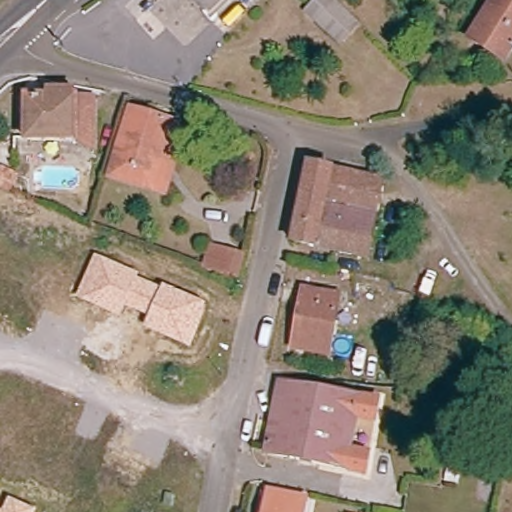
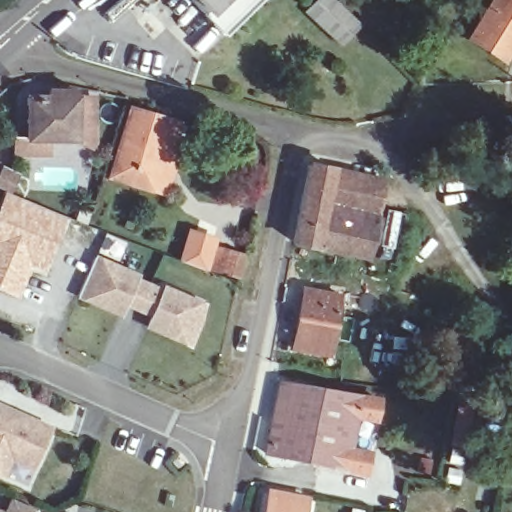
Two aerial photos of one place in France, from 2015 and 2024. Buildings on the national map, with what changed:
unchanged [(191,0),(226,0),(208,17),(191,0)]
unchanged [(315,0),(337,0),(361,24),(342,43),(307,8),(315,0)]
unchanged [(466,39),(490,0),(512,0),(512,47),(504,60),(466,39)]
unchanged [(65,97),(84,97),(84,143),(83,143),(68,141),(21,142),(20,96),(40,96),(40,89),(66,89),(65,97)]
unchanged [(149,195),(104,182),(107,173),(125,111),(172,125),(169,138),(180,141),(164,196),(162,200),(149,195)]
unchanged [(385,181),(369,258),(295,242),(310,164),(385,181)]
new [(42,210),(60,217),(40,269),(26,263),(15,292),(0,286),(0,212),(7,193),(42,210)]
unchanged [(227,251),(245,256),(238,277),(220,271),(227,251)]
unchanged [(95,255),(139,273),(137,277),(161,287),(163,285),(206,302),(205,314),(190,348),(144,328),(149,316),(126,307),(122,318),(77,297),(95,255)]
unchanged [(341,297),(330,356),(294,349),(305,290),(341,297)]
unchanged [(378,404),(375,422),(356,419),(350,449),(369,453),(365,474),(266,453),(281,384),(378,404)]
new [(37,470),(15,460),(7,478),(0,475),(0,407),(35,422),(41,426),(55,432),(37,470)]
unchanged [(475,411),(468,440),(451,437),(457,407),(475,411)]
unchanged [(447,465),(465,468),(461,488),(443,485),(447,465)]
unchanged [(307,499),(305,512),(268,512),(272,491),(307,499)]
unchanged [(9,497),(37,510),(37,512),(0,512),(0,510),(3,511),(9,497)]

